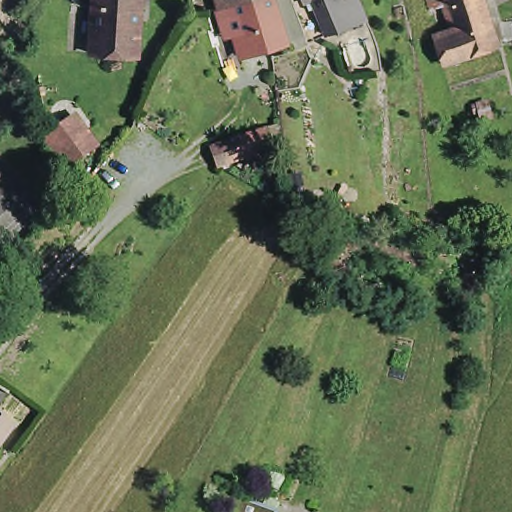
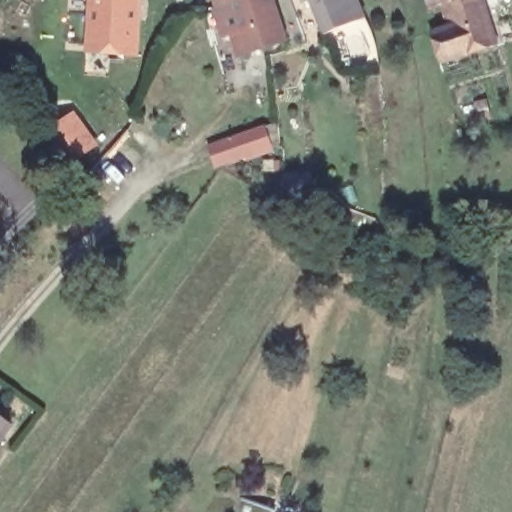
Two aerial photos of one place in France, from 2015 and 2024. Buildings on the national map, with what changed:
unchanged [(85,52),(88,27),(89,0),(136,0),(134,34),(133,55),(85,52)]
unchanged [(233,7),(218,12),(215,2),(218,2),(217,0),(272,0),(283,37),(246,48),(233,7)]
unchanged [(308,0),(350,0),(356,16),(333,25),(336,36),(324,41),(320,30),(308,0)]
unchanged [(445,16),(440,0),(482,0),(484,4),(445,16)]
unchanged [(484,4),(495,42),(441,59),(432,30),(448,25),(445,16),(484,4)]
unchanged [(41,141),(58,128),(74,118),(83,132),(95,149),(91,152),(63,172),(41,141)]
unchanged [(211,149),(263,131),(268,147),(221,163),(216,165),(213,159),(211,149)]
unchanged [(0,406),(0,391),(6,396),(0,406)]
unchanged [(0,434),(0,424),(5,427),(0,434)]
unchanged [(239,502),(268,512),(235,512),(239,502)]

